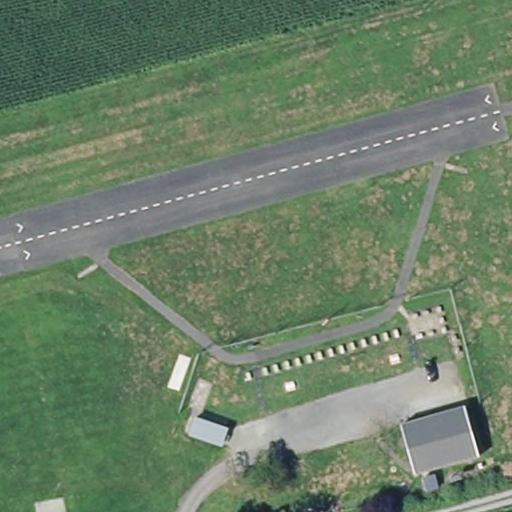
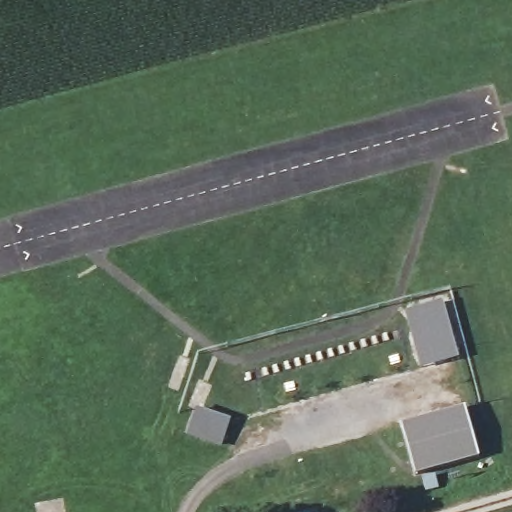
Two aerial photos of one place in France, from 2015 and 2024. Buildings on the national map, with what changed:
new [(442,297),(460,358),(419,369),(403,308),(442,297)]
unchanged [(470,407),(484,457),(419,474),(405,425),(470,407)]

